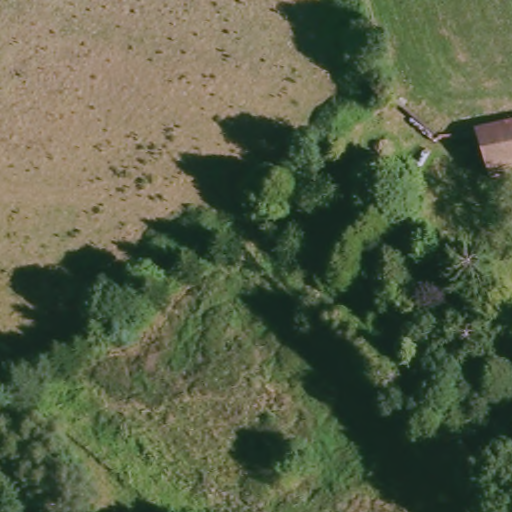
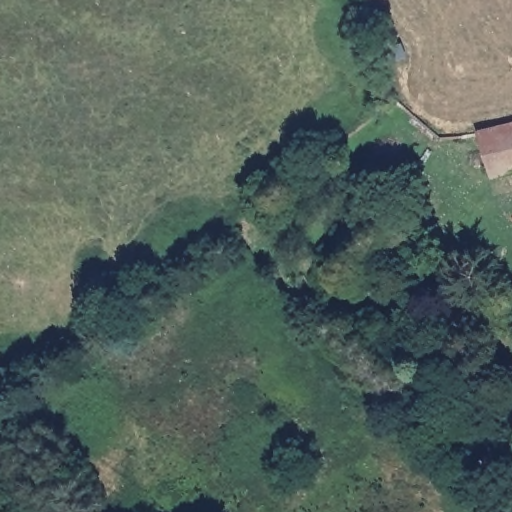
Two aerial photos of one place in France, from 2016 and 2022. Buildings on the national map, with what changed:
unchanged [(512,130),(512,175),(474,182),(462,140),(512,130)]

